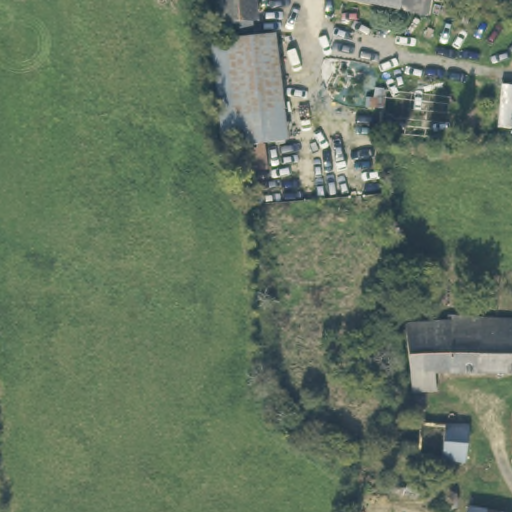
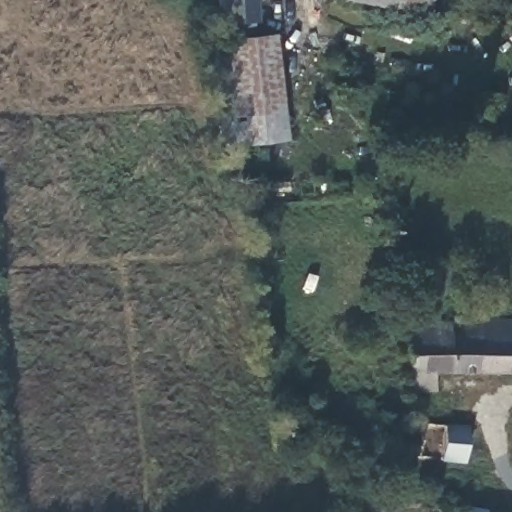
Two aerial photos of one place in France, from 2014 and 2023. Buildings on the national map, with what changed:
unchanged [(256,29),(230,30),(221,29),(220,0),(254,0),(256,29)]
unchanged [(357,0),(434,0),(431,15),(357,0)]
unchanged [(243,181),(241,140),(221,142),(210,37),(231,35),(275,31),(286,135),(262,138),(266,179),(243,181)]
unchanged [(378,128),(379,103),(379,93),(387,93),(479,98),(478,130),(386,128),(378,128)]
unchanged [(436,371),(436,392),(411,390),(409,326),(448,328),(447,320),(480,321),(512,322),(512,373),(436,371)]
unchanged [(465,462),(447,459),(442,459),(416,455),(420,425),(419,418),(446,423),(469,424),(465,462)]
unchanged [(453,498),(457,502),(459,507),(456,512),(442,512),(440,507),(442,502),(447,498),(453,498)]
unchanged [(487,512),(467,512),(468,508),(487,512)]

